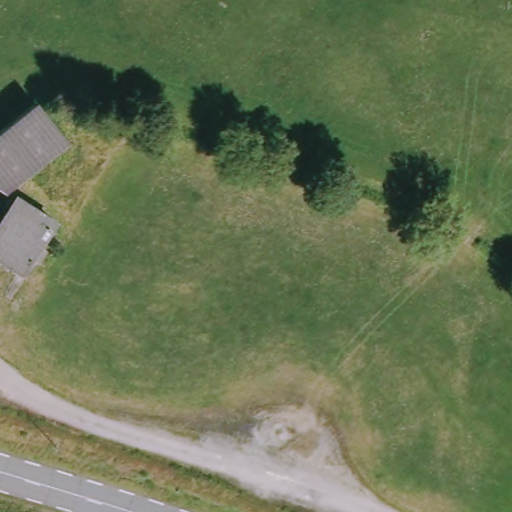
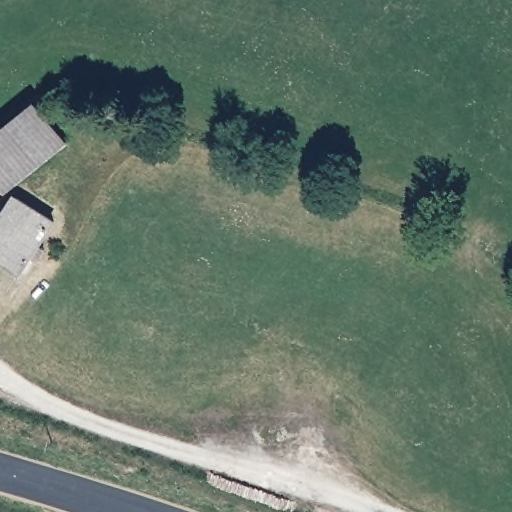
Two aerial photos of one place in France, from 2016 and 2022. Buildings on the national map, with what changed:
unchanged [(36,98),(72,137),(13,191),(0,184),(0,130),(36,98)]
unchanged [(22,270),(0,256),(0,234),(23,197),(55,218),(22,270)]

